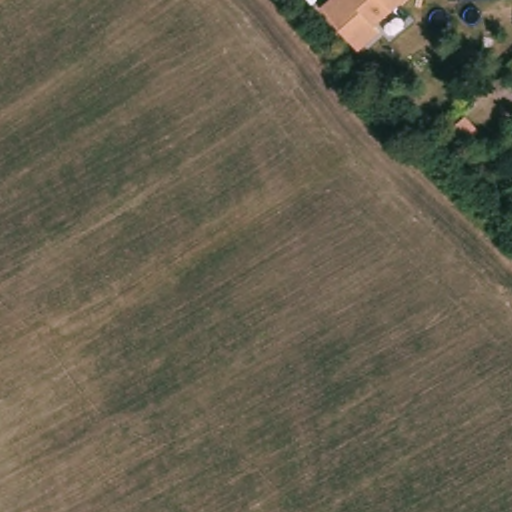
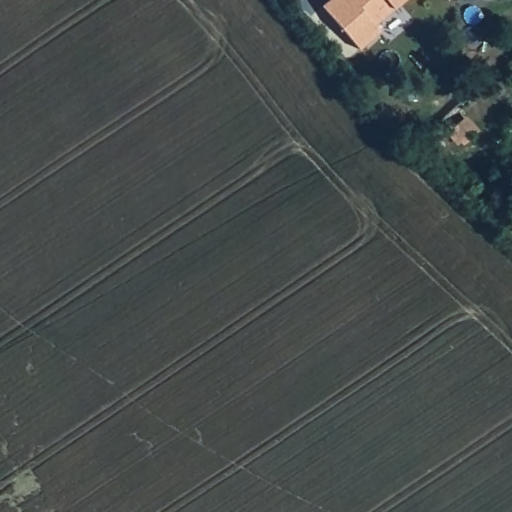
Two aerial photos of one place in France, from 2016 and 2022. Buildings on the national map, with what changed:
unchanged [(376,26),(380,31),(356,48),(320,4),(326,0),(405,0),(376,26)]
unchanged [(462,1),(462,0),(480,0),(462,1)]

